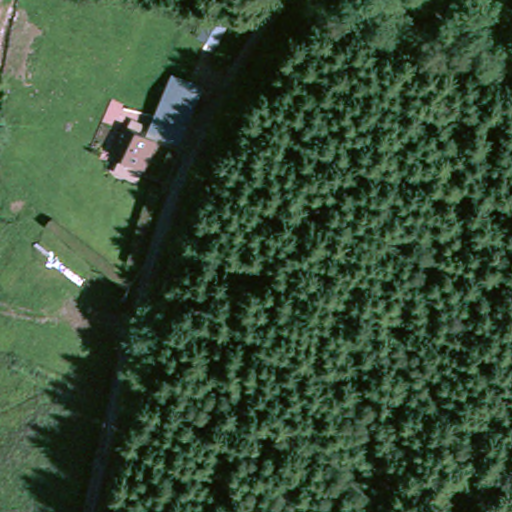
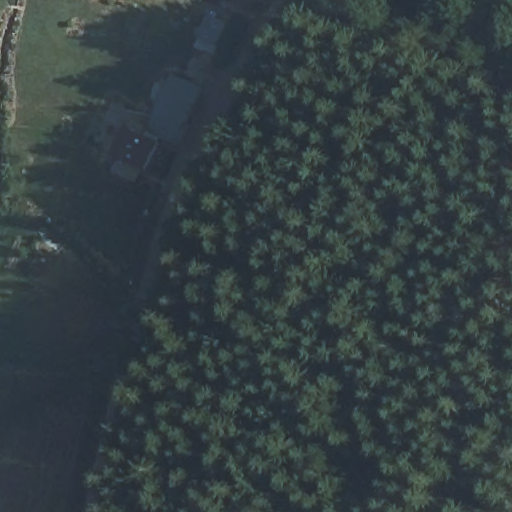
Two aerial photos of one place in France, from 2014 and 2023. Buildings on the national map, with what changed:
unchanged [(134,123),(149,125),(163,89),(192,91),(179,141),(157,139),(149,178),(125,169),(134,123)]

